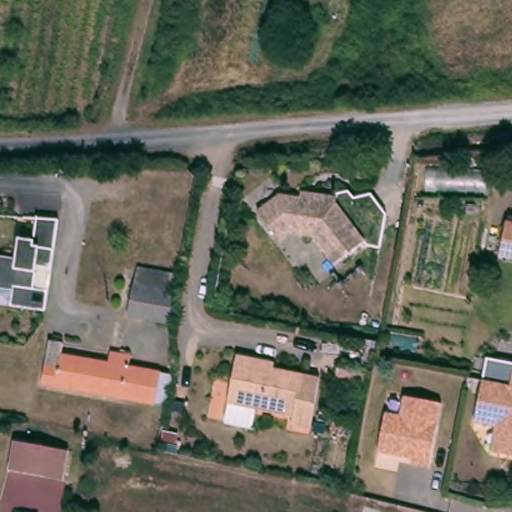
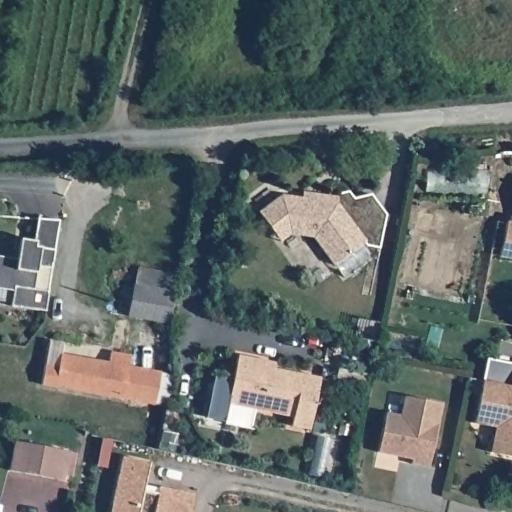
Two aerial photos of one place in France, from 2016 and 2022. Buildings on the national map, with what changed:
unchanged [(286,244),(281,237),(264,215),(287,197),(307,200),(308,195),(325,197),(344,200),(343,206),(371,245),(340,267),(319,240),(308,238),(296,236),(286,244)]
unchanged [(19,285),(0,281),(0,258),(0,255),(25,259),(27,241),(40,244),(45,216),(66,219),(58,266),(45,265),(42,287),(55,289),(51,310),(16,304),(19,285)]
unchanged [(498,255),(506,219),(512,219),(512,258),(498,255)]
unchanged [(136,316),(147,263),(157,265),(155,270),(185,275),(176,325),(136,316)]
unchanged [(45,383),(52,340),(65,343),(64,354),(111,362),(113,352),(132,356),(130,367),(175,375),(170,406),(45,383)]
unchanged [(280,365),(278,370),(325,380),(314,431),(295,427),(297,418),(232,404),(242,356),(265,361),(280,365)]
unchanged [(490,448),(496,423),(475,418),(483,376),(511,382),(512,382),(512,452),(498,450),(496,449),(490,448)]
unchanged [(429,467),(412,463),(411,463),(412,458),(377,451),(386,412),(400,415),(405,396),(425,400),(442,404),(429,467)]
unchanged [(75,450),(70,479),(15,468),(21,440),(75,450)]
new [(147,462),(141,490),(157,493),(158,487),(192,495),(189,512),(109,512),(121,456),(147,462)]

